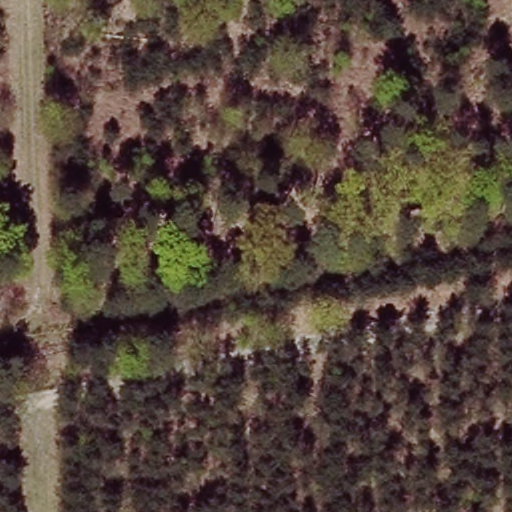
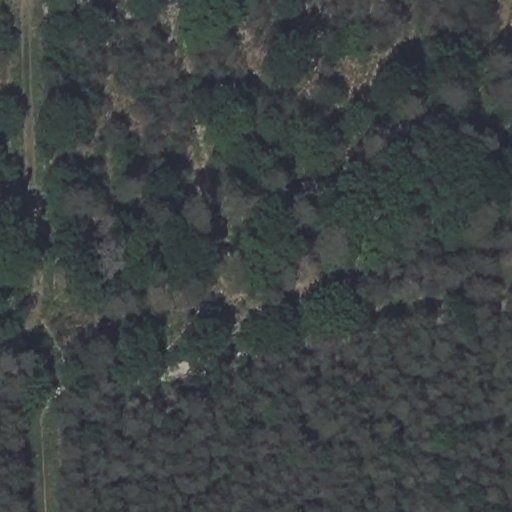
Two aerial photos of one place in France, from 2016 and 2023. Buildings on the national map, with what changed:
[]

